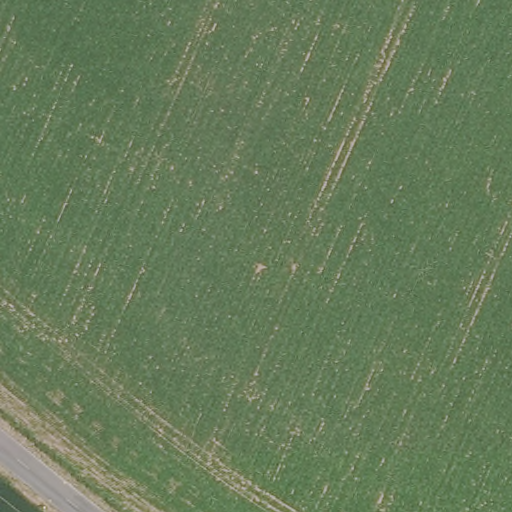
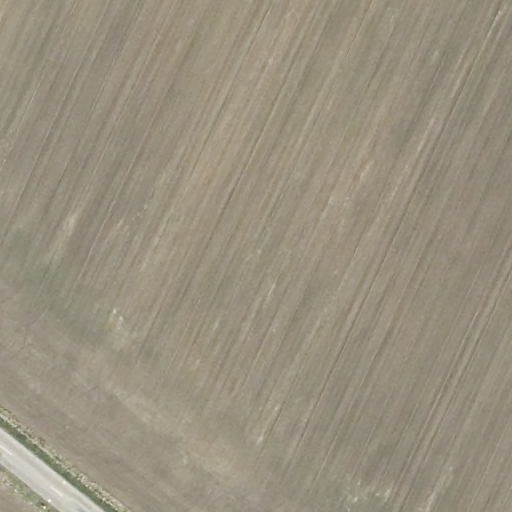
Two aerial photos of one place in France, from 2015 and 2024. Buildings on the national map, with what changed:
[]

